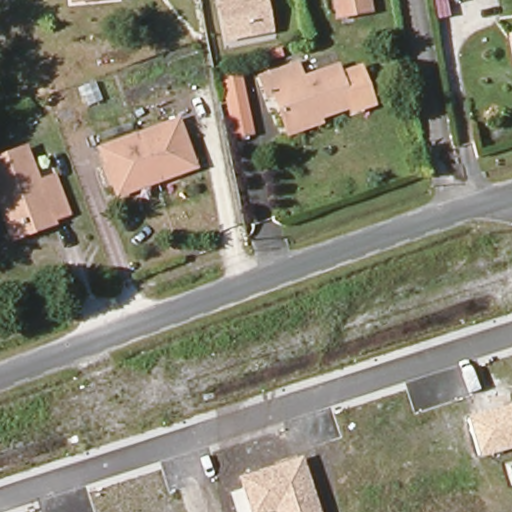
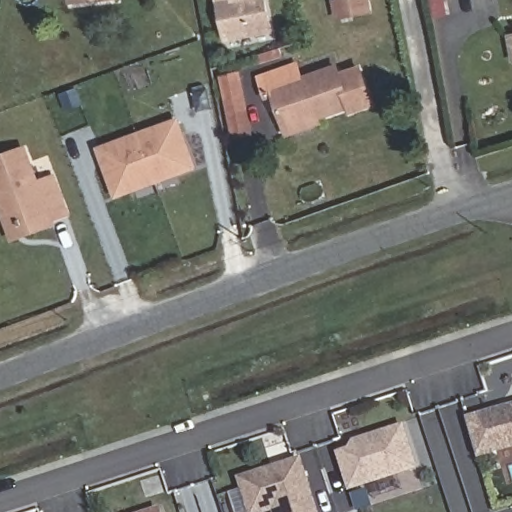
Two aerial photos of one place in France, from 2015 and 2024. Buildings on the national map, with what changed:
unchanged [(224,39),(217,2),(225,0),(265,0),(271,30),(224,39)]
unchanged [(328,4),(347,0),(360,0),(363,14),(331,20),(328,4)]
unchanged [(290,131),(287,122),(275,90),(268,92),(262,76),(298,63),(304,78),(338,65),(341,72),(361,65),(374,100),(353,109),(351,104),(321,115),(322,120),(290,131)]
unchanged [(244,105),(248,130),(231,133),(227,109),(244,105)]
unchanged [(178,120),(195,166),(178,173),(176,168),(133,184),(135,189),(118,195),(101,149),(178,120)]
unchanged [(15,236),(0,200),(0,159),(23,150),(36,182),(49,177),(62,212),(49,218),(51,222),(15,236)]
unchanged [(468,416),(512,404),(512,449),(480,458),(468,416)]
new [(350,491),(337,452),(349,448),(354,440),(405,424),(420,470),(350,491)]
unchanged [(320,512),(250,512),(241,477),(301,457),(320,512)]
new [(161,506),(163,512),(143,512),(161,506)]

